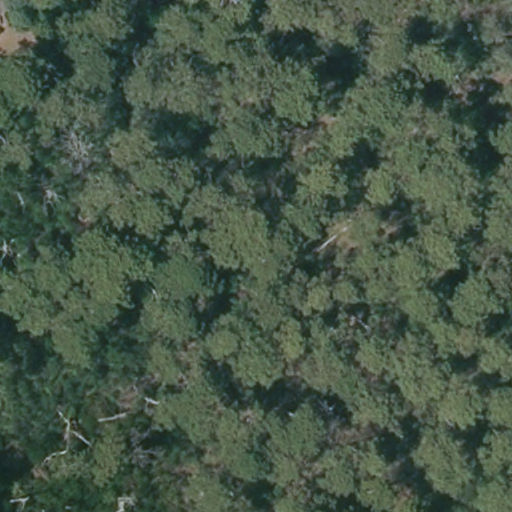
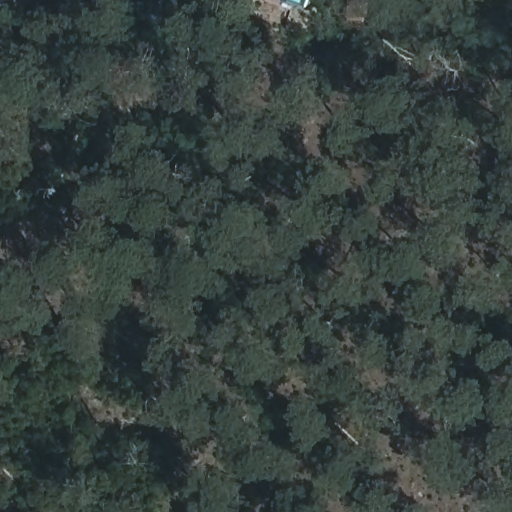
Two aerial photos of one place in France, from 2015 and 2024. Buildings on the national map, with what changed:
[]

